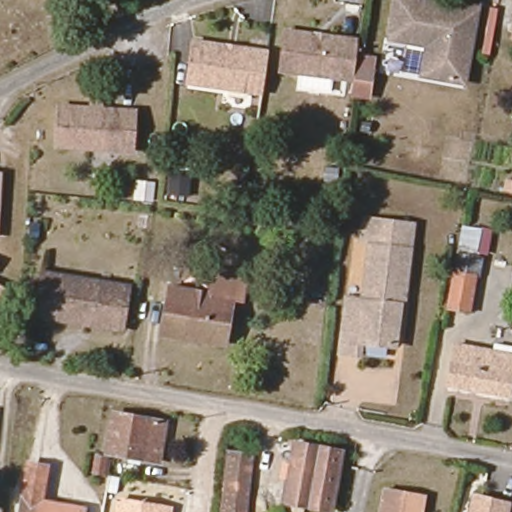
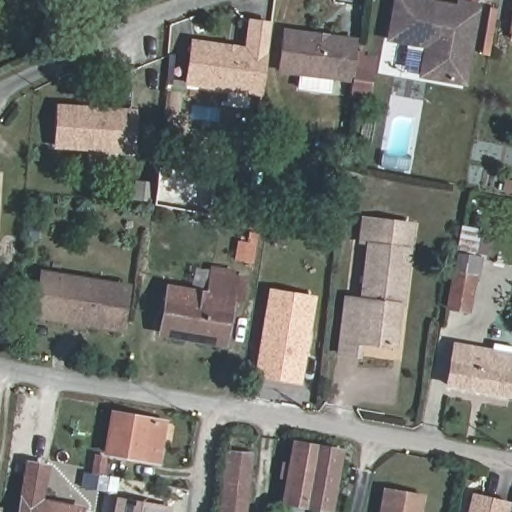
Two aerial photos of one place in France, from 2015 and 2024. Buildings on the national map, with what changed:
unchanged [(466,87),(424,81),(429,51),(392,46),(399,3),(460,12),(460,7),(479,11),(473,44),(467,42),(465,56),(471,56),(466,87)]
unchanged [(512,20),(512,32),(510,32),(512,20)]
unchanged [(284,27),(359,37),(358,54),(376,57),(373,99),(349,96),(350,81),(277,71),(284,27)]
unchanged [(261,89),(186,80),(191,40),(266,49),(261,89)]
unchanged [(133,149),(58,143),(62,104),(137,110),(133,149)]
unchanged [(107,181),(106,189),(97,189),(98,180),(107,181)]
unchanged [(370,249),(370,242),(362,242),(365,222),(413,229),(410,254),(370,249)]
unchanged [(477,256),(485,258),(481,278),(477,277),(469,317),(450,312),(463,229),(480,232),(477,256)]
unchanged [(404,300),(398,299),(397,308),(401,309),(395,351),(359,347),(358,360),(340,358),(346,315),(360,317),(370,249),(410,254),(404,300)]
unchanged [(210,266),(245,271),(244,300),(235,299),(235,297),(207,293),(210,266)]
unchanged [(120,328),(35,315),(42,272),(114,283),(111,299),(125,301),(120,328)]
unchanged [(4,289),(0,302),(0,288),(4,289)]
new [(254,377),(268,288),(316,296),(302,386),(254,377)]
unchanged [(162,340),(163,329),(168,290),(235,300),(229,338),(227,350),(162,340)]
unchanged [(0,361),(0,346),(1,346),(0,361)]
unchanged [(512,375),(509,390),(449,381),(454,350),(512,360),(512,375)]
unchanged [(190,426),(185,446),(166,442),(162,467),(115,460),(109,477),(95,475),(113,412),(190,426)]
unchanged [(343,450),(333,512),(310,509),(311,503),(290,501),(300,444),(343,450)]
unchanged [(231,462),(257,465),(251,512),(225,512),(231,462)]
unchanged [(77,507),(85,509),(84,512),(21,512),(26,487),(31,463),(51,467),(45,490),(43,502),(77,507)]
unchanged [(503,512),(468,512),(474,490),(506,498),(503,512)]
unchanged [(425,497),(422,512),(383,512),(386,492),(425,497)]
unchanged [(172,512),(114,512),(116,498),(173,507),(172,512)]

